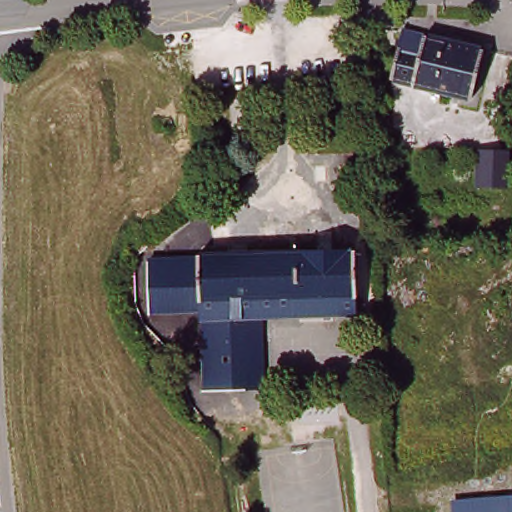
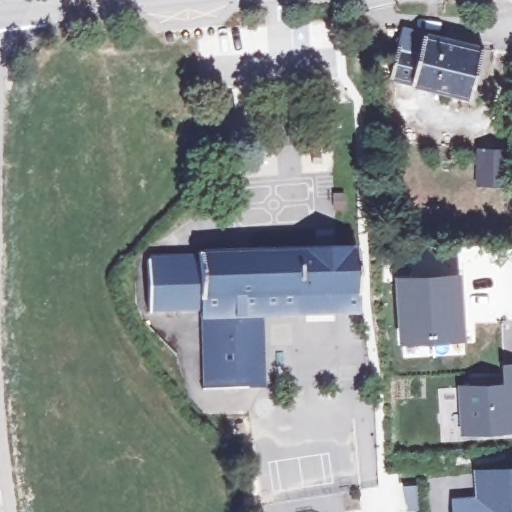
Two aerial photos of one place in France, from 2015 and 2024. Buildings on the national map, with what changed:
unchanged [(403,27),(488,47),(474,97),(390,76),(403,27)]
unchanged [(509,156),(508,186),(482,185),(484,154),(509,156)]
unchanged [(314,177),(312,162),(322,161),(323,177),(314,177)]
unchanged [(159,294),(153,294),(152,254),(202,252),(202,250),(364,246),(364,293),(361,293),(361,310),(305,311),(305,294),(302,294),(302,290),(249,291),(250,394),(220,394),(218,304),(180,305),(180,315),(164,316),(164,304),(159,305),(159,294)]
new [(462,270),(465,339),(400,343),(394,274),(462,270)]
new [(466,430),(465,386),(507,384),(505,366),(512,366),(512,427),(466,430)]
unchanged [(512,490),(512,512),(467,512),(466,492),(512,490)]
demolished [(419,494),(419,512),(383,512),(382,496),(419,494)]

